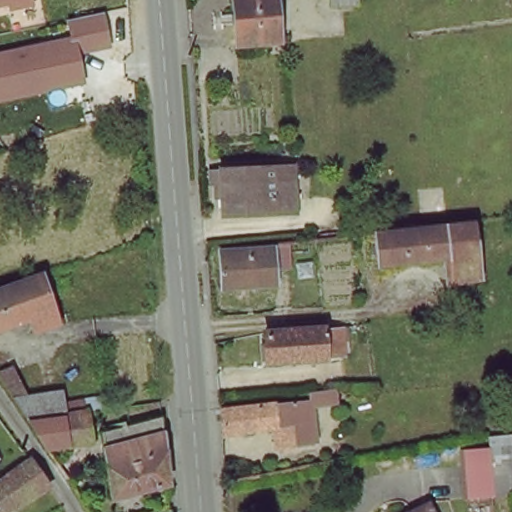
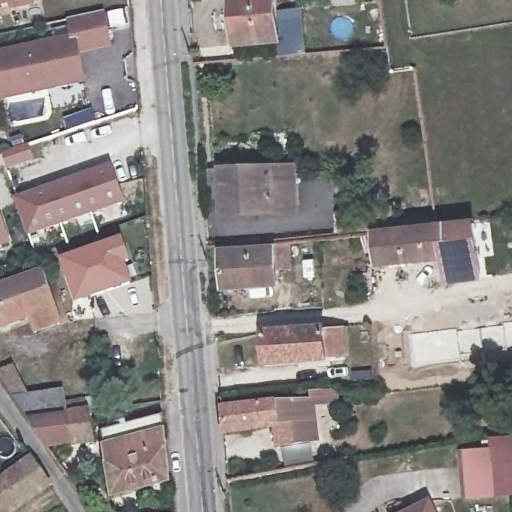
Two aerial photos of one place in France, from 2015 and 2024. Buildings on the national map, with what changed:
unchanged [(9,6),(0,7),(0,0),(32,0),(34,7),(10,12),(9,6)]
unchanged [(283,40),(235,42),(233,0),(281,0),(283,40)]
unchanged [(357,6),(334,8),(333,0),(357,0),(357,6)]
unchanged [(86,85),(0,101),(0,51),(69,37),(67,19),(106,11),(114,47),(80,55),(86,85)]
new [(1,154),(27,145),(32,160),(5,168),(1,154)]
unchanged [(273,209),(222,214),(219,169),(261,165),(289,162),(298,162),(299,177),(300,189),(301,206),(273,209)]
new [(15,200),(109,167),(120,201),(26,232),(15,200)]
unchanged [(352,207),(354,218),(341,219),(340,207),(352,207)]
new [(0,242),(0,225),(5,240),(0,242)]
unchanged [(480,292),(450,294),(444,257),(377,262),(375,247),(349,248),(349,237),(474,225),(480,292)]
new [(123,237),(132,263),(129,264),(134,285),(75,306),(60,260),(123,237)]
unchanged [(225,287),(219,247),(293,246),(296,267),(279,269),(279,286),(225,287)]
unchanged [(32,320),(9,327),(0,330),(0,289),(43,273),(54,313),(59,328),(37,334),(32,320)]
unchanged [(264,330),(349,327),(349,358),(265,363),(264,330)]
unchanged [(33,425),(0,380),(0,374),(13,366),(41,400),(52,424),(33,425)]
unchanged [(339,391),(341,414),(314,419),(315,437),(287,441),(286,425),(238,432),(236,404),(339,391)]
unchanged [(71,400),(72,412),(90,412),(94,423),(99,446),(50,448),(33,425),(52,424),(41,400),(71,400)]
unchanged [(165,449),(168,486),(117,495),(113,466),(107,436),(162,420),(165,449)]
unchanged [(487,451),(485,439),(512,436),(512,499),(465,503),(461,455),(487,451)]
unchanged [(16,512),(0,512),(0,487),(36,461),(53,487),(16,512)]
unchanged [(441,512),(423,512),(438,506),(441,512)]

